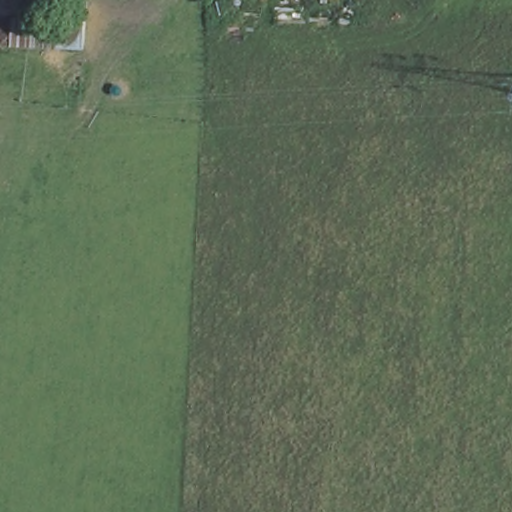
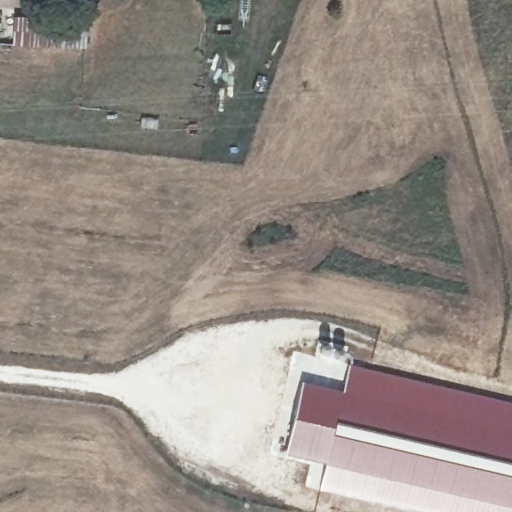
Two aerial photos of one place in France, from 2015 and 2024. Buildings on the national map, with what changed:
unchanged [(36,15),(37,10),(90,15),(89,47),(13,45),(16,16),(36,15)]
new [(326,463),(286,453),(303,381),(344,390),(349,364),(512,402),(512,512),(421,512),(320,488),(326,463)]

